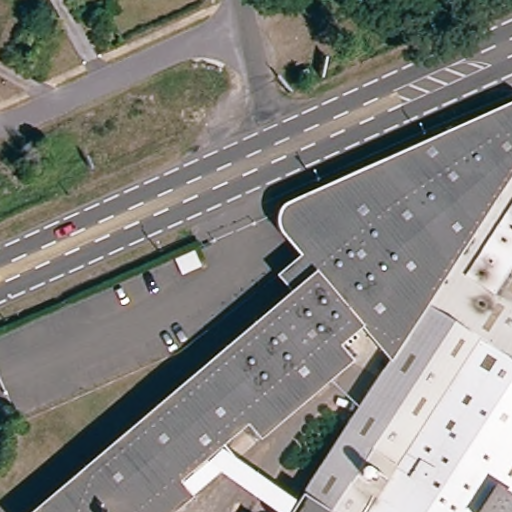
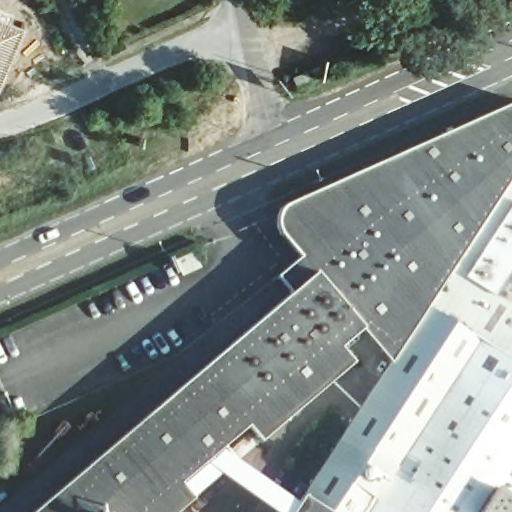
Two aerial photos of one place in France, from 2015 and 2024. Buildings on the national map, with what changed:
new [(0,17),(25,28),(0,84),(0,17)]
unchanged [(428,307),(386,371),(355,336),(335,353),(347,369),(255,448),(242,433),(174,492),(187,507),(181,512),(39,512),(285,300),(272,285),(302,259),(281,235),(280,234),(278,231),(277,227),(276,224),(276,221),(276,219),(277,217),(278,213),(280,211),(281,209),(282,207),(285,206),(512,103),(512,177),(428,307)]
unchanged [(386,371),(428,307),(512,177),(512,512),(298,512),(296,511),(386,371)]
unchanged [(296,511),(298,512),(295,512),(296,511)]

